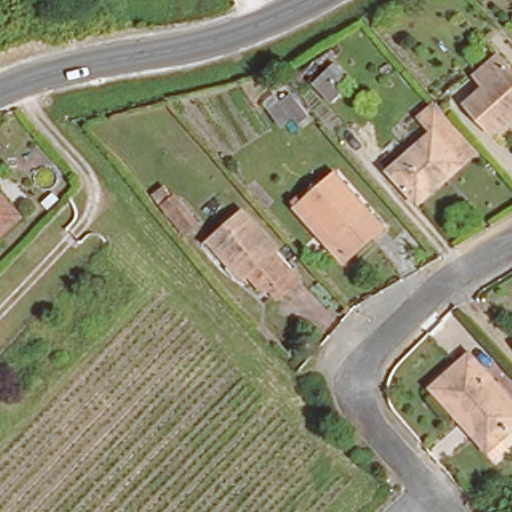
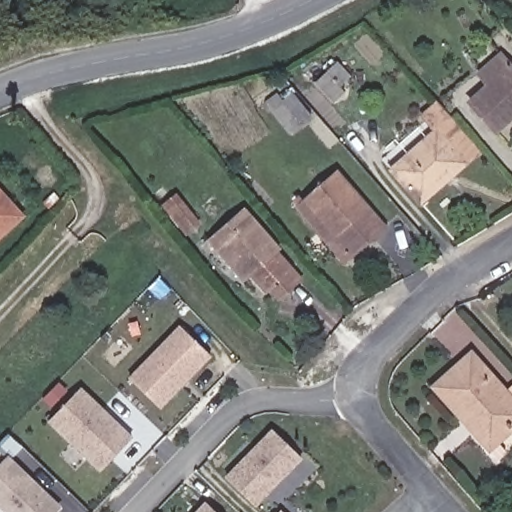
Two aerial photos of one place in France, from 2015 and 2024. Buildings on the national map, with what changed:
unchanged [(500,49),(512,62),(512,121),(483,146),(457,117),(477,101),(466,88),(487,70),(473,54),(492,39),(500,49)]
new [(336,60),(350,75),(339,86),(344,91),(333,101),(315,81),(326,71),(336,60)]
unchanged [(465,133),(479,150),(419,201),(392,170),(434,132),(421,117),(438,102),(465,133)]
unchanged [(294,212),(300,206),(333,177),(382,232),(348,261),(331,241),(325,247),(294,212)]
unchanged [(0,225),(0,195),(15,212),(0,225)]
unchanged [(166,207),(184,228),(173,237),(155,216),(166,207)]
unchanged [(280,298),(270,287),(266,291),(251,274),(246,278),(208,237),(211,234),(242,207),(294,266),(304,277),(280,298)]
new [(180,326),(210,355),(159,407),(129,378),(180,326)]
unchanged [(486,448),(455,415),(430,387),(467,352),(512,401),(512,424),(486,448)]
new [(81,387),(132,437),(100,469),(49,420),(81,387)]
new [(274,428),(303,457),(257,503),(229,475),(274,428)]
new [(61,505),(54,512),(10,512),(0,502),(0,464),(8,456),(61,505)]
new [(220,512),(198,512),(209,501),(220,512)]

